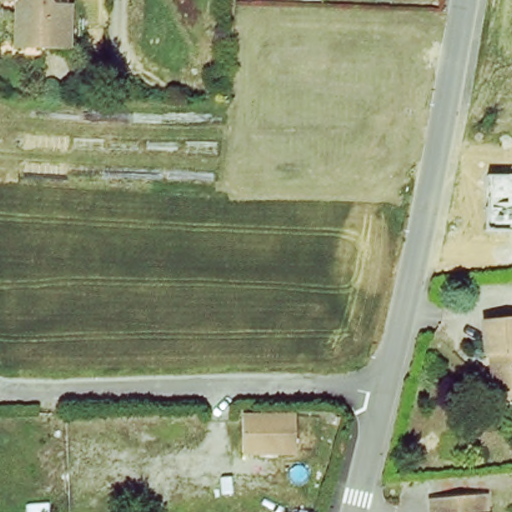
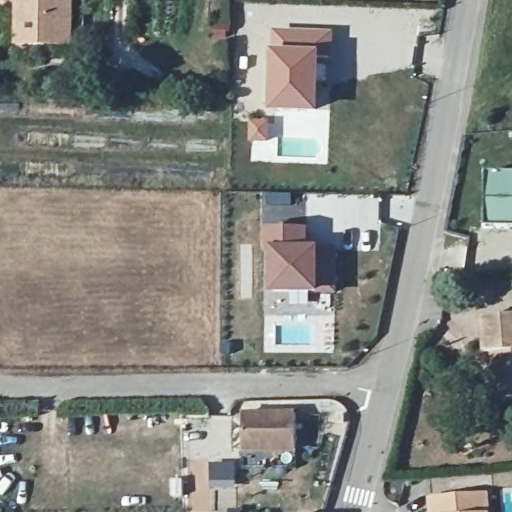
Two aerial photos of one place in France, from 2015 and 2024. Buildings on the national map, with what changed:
unchanged [(66,6),(69,6),(69,50),(15,47),(15,1),(0,0),(66,0),(66,6)]
new [(271,30),(334,30),(333,48),(322,48),(318,114),(269,112),(271,30)]
new [(248,119),(270,119),(269,142),(248,141),(248,119)]
unchanged [(512,173),(512,229),(489,230),(486,174),(512,173)]
new [(269,296),(271,255),(264,255),(266,228),(309,229),(309,249),(321,249),(338,248),(337,295),(321,296),(269,296)]
unchanged [(487,353),(484,354),(482,320),(512,317),(512,397),(492,398),(487,353)]
unchanged [(294,413),(294,450),(240,450),(240,413),(294,413)]
unchanged [(483,491),(485,512),(429,512),(429,496),(483,491)]

